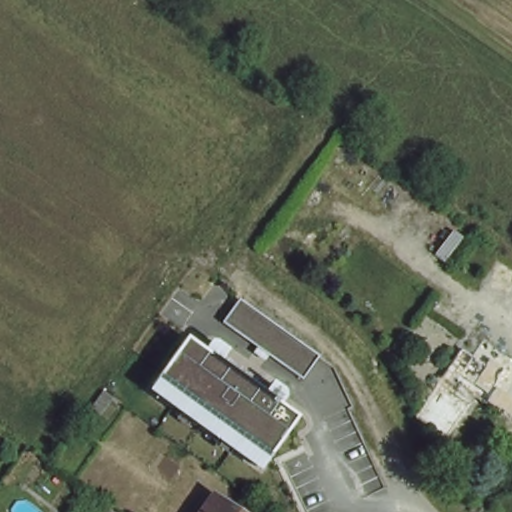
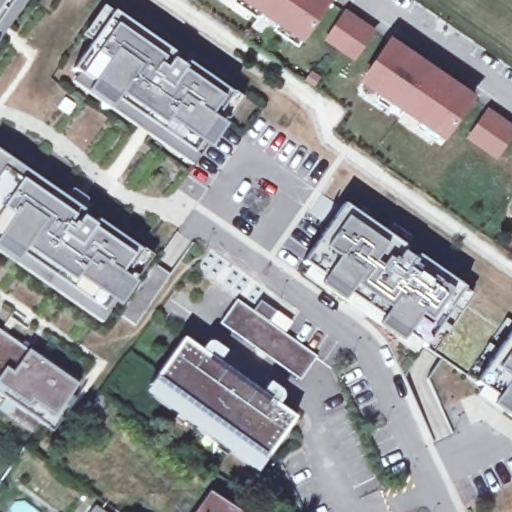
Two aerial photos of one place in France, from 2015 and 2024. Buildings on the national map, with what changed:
new [(0,16),(0,0),(11,0),(0,16)]
new [(328,2),(297,48),(273,31),(279,22),(262,11),(257,20),(232,3),(234,0),(324,0),(328,2)]
new [(105,4),(125,18),(120,25),(224,97),(212,115),(227,123),(210,147),(201,141),(187,165),(71,83),(78,73),(73,69),(93,40),(85,33),(105,4)]
new [(345,14),(372,33),(353,59),(327,40),(345,14)]
new [(405,56),(408,51),(418,58),(446,77),(456,84),(453,89),(470,100),(440,146),(415,129),(422,120),(405,109),(399,118),(375,101),(380,92),(363,80),(388,44),(405,56)]
new [(512,130),(512,134),(495,157),(468,138),(487,112),(512,130)]
new [(29,173),(23,181),(78,216),(80,213),(98,224),(95,229),(133,255),(123,274),(135,281),(120,303),(112,297),(100,322),(0,253),(0,153),(29,173)]
new [(343,205),(355,212),(350,220),(387,243),(390,236),(408,248),(405,252),(415,258),(410,266),(438,285),(443,276),(463,288),(424,346),(420,343),(414,352),(303,275),(309,266),(304,261),(343,205)]
unchanged [(316,356),(299,381),(222,325),(240,302),(316,356)]
unchanged [(483,387),(477,382),(512,330),(512,420),(477,395),(483,387)]
new [(30,351),(78,385),(72,394),(77,397),(52,431),(0,395),(0,332),(30,351)]
unchanged [(200,349),(210,340),(226,350),(287,393),(282,407),(295,415),(256,471),(143,393),(183,337),(200,349)]
demolished [(439,433),(406,411),(433,374),(465,396),(439,433)]
unchanged [(97,417),(85,409),(99,389),(111,397),(97,417)]
demolished [(512,465),(497,468),(491,449),(512,445),(512,465)]
unchanged [(232,512),(193,512),(205,493),(232,512)]
unchanged [(102,512),(96,512),(98,509),(102,512)]

